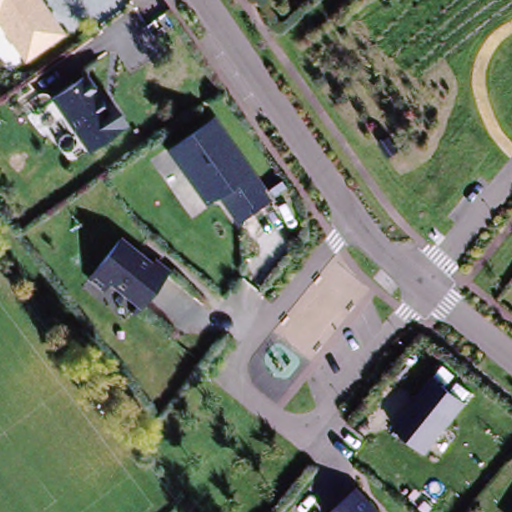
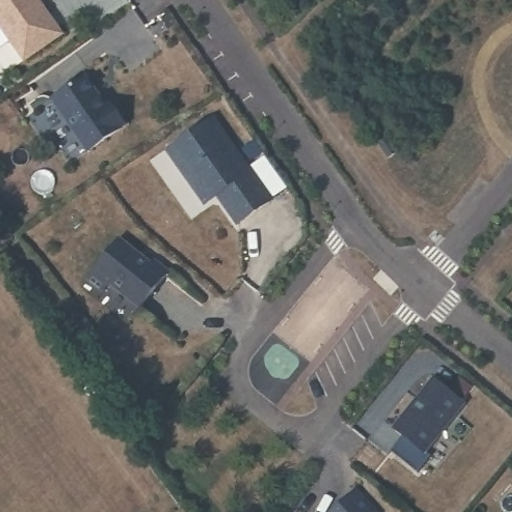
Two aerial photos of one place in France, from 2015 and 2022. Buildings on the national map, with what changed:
unchanged [(33,58),(3,15),(0,17),(0,0),(47,0),(69,31),(33,58)]
unchanged [(110,106),(113,104),(129,126),(93,151),(58,100),(90,78),(110,106)]
unchanged [(278,203),(245,227),(225,198),(213,207),(175,154),(220,121),(278,203)]
unchanged [(389,138),(399,153),(391,159),(381,144),(389,138)]
unchanged [(156,267),(159,263),(171,273),(144,308),(113,283),(106,291),(93,280),(125,242),(156,267)]
unchanged [(428,453),(398,429),(436,381),(466,405),(428,453)]
unchanged [(359,494),(376,512),(339,512),(359,494)]

